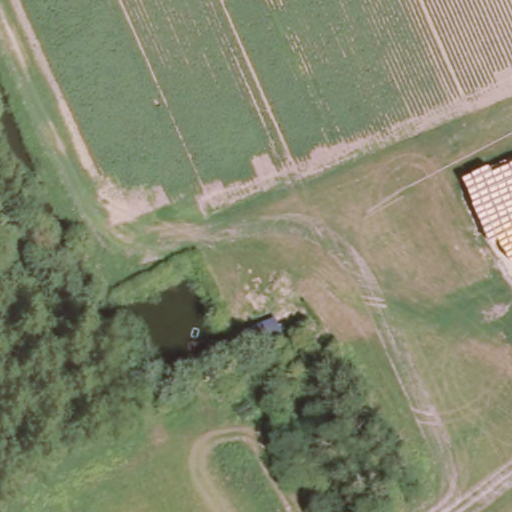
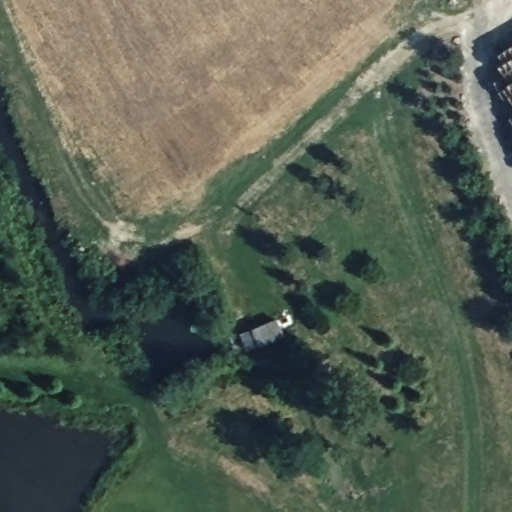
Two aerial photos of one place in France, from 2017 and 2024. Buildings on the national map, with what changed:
[]

